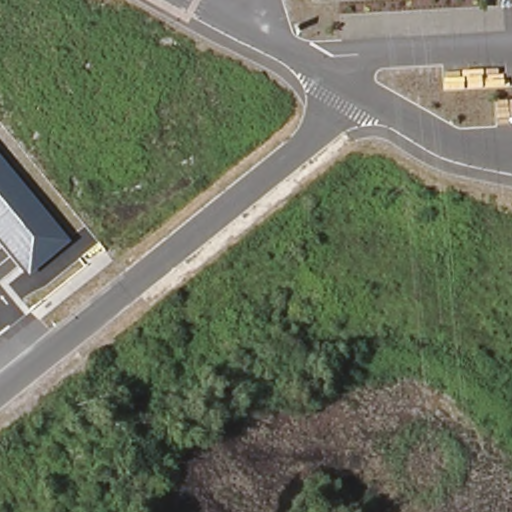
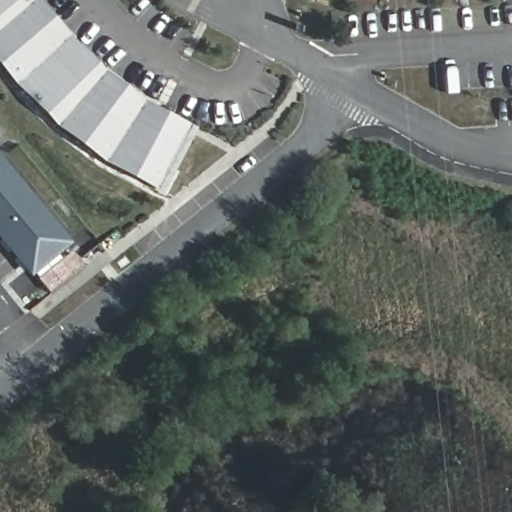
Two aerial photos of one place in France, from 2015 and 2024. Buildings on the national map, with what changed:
new [(104,160),(54,125),(14,84),(0,67),(0,0),(39,0),(69,35),(104,70),(144,99),(187,122),(152,187),(104,160)]
unchanged [(0,240),(0,153),(72,242),(30,276),(0,240)]

